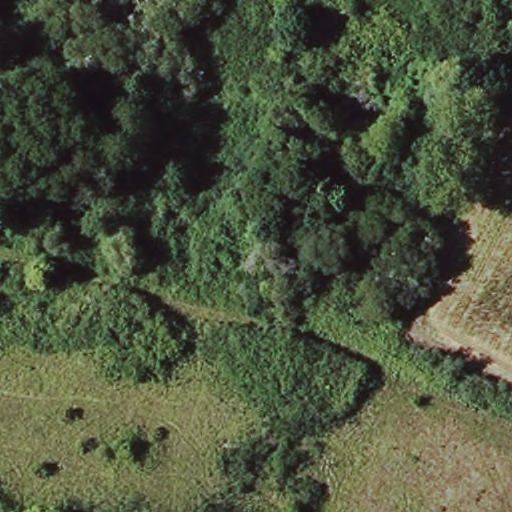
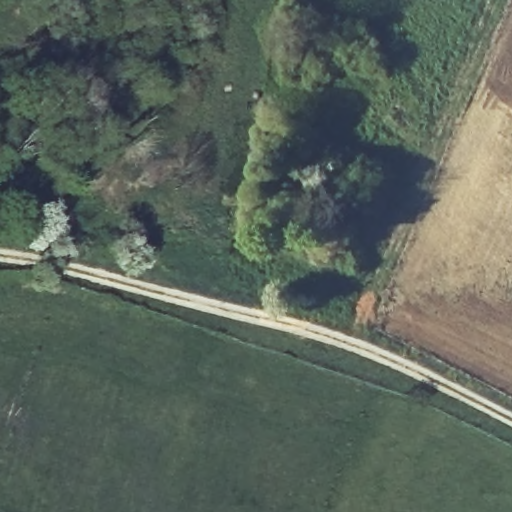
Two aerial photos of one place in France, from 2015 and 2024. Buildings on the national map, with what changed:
[]

